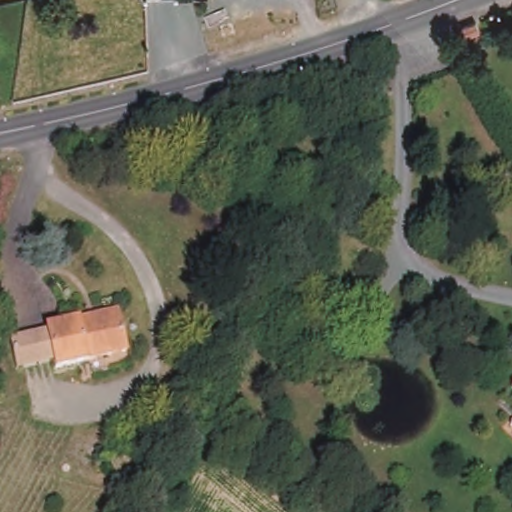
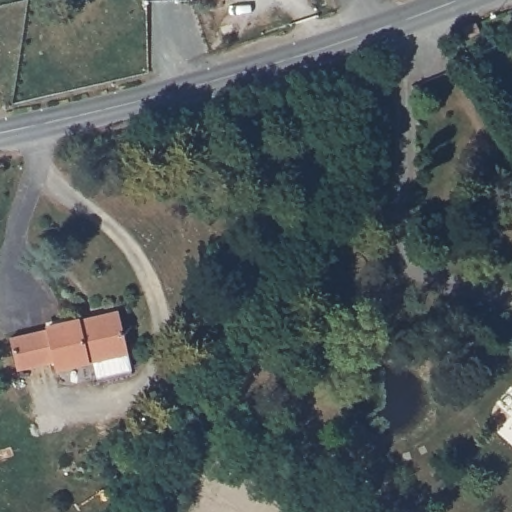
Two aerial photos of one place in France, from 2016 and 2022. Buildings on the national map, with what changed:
unchanged [(471,24),(458,29),(455,19),(468,14),(471,24)]
unchanged [(59,367),(50,325),(81,318),(81,322),(98,319),(97,316),(120,311),(129,351),(59,367)]
unchanged [(15,368),(10,336),(50,325),(57,361),(15,368)]

